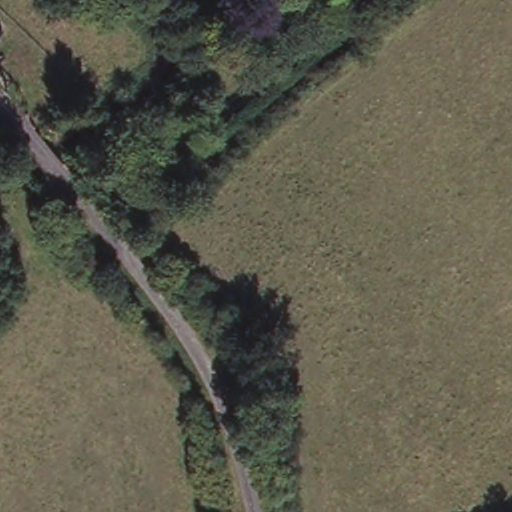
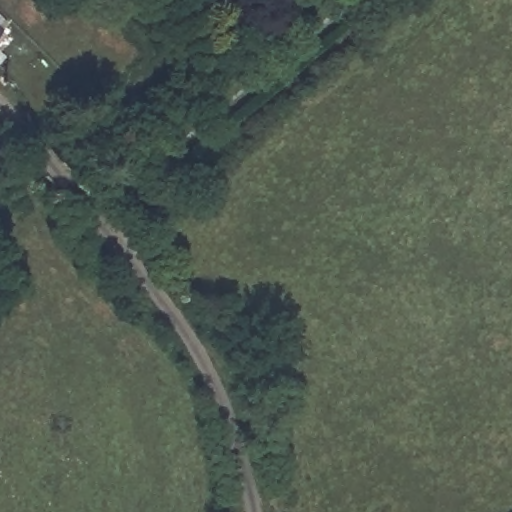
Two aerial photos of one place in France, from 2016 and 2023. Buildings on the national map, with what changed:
unchanged [(0,37),(0,16),(9,22),(0,37)]

